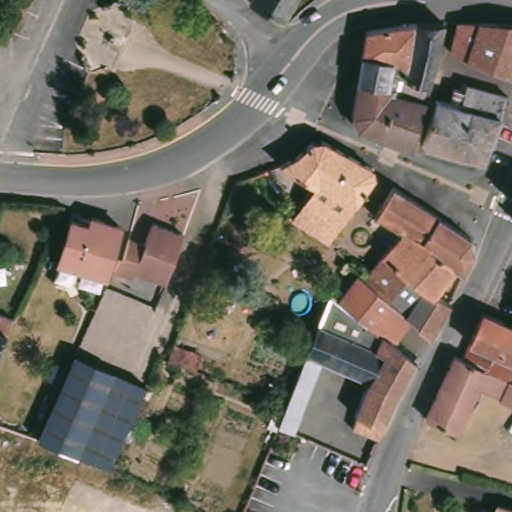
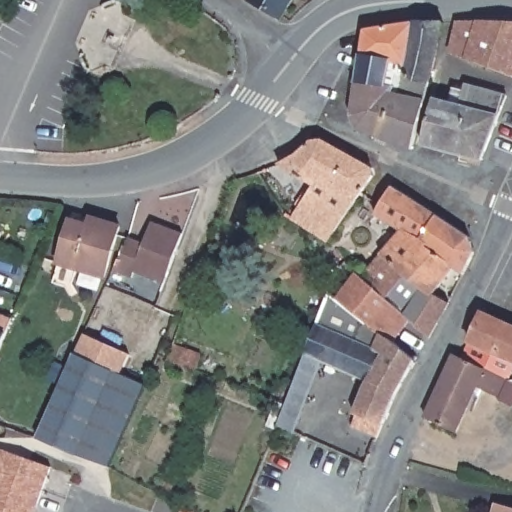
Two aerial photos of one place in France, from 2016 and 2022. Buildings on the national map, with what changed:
unchanged [(287,19),(270,9),(256,0),(299,0),(287,19)]
unchanged [(431,88),(428,102),(423,128),(418,152),(410,149),(407,147),(362,129),(361,129),(354,111),(358,83),(359,81),(383,87),(394,90),(396,90),(399,91),(400,91),(403,90),(405,88),(406,86),(406,85),(408,79),(408,77),(417,21),(436,21),(445,22),(431,88)]
unchanged [(406,77),(399,76),(396,90),(394,90),(383,87),(359,81),(363,54),(368,29),(395,24),(411,22),(417,21),(408,77),(406,77)]
unchanged [(495,23),(512,23),(512,69),(479,56),(459,48),(465,22),(495,23)]
unchanged [(463,107),(467,87),(510,94),(502,115),(484,161),(433,152),(425,150),(428,136),(432,120),(432,119),(436,102),(463,107)]
unchanged [(316,187),(280,165),(285,163),(291,159),(296,157),(303,153),(306,151),(309,147),(312,143),(321,142),(324,143),(336,149),(360,162),(375,169),(374,181),(367,190),(365,194),(331,243),(317,234),(297,222),(304,211),(316,187)]
unchanged [(471,238),(477,254),(465,277),(453,271),(436,296),(451,304),(430,341),(408,326),(396,344),(417,361),(397,398),(386,425),(379,439),(352,429),(357,418),(354,416),(365,382),(322,364),(294,435),(278,430),(329,293),(334,298),(356,272),(363,276),(400,232),(374,214),(393,187),(471,238)]
unchanged [(80,218),(96,224),(97,220),(124,231),(105,280),(62,264),(80,218)]
unchanged [(147,245),(152,223),(187,232),(176,278),(144,271),(142,278),(119,273),(122,264),(127,265),(132,242),(147,245)]
unchanged [(512,325),(512,379),(470,360),(488,315),(512,325)]
unchanged [(16,322),(11,336),(0,363),(0,316),(16,322)]
new [(80,357),(75,355),(85,334),(131,354),(121,375),(80,357)]
unchanged [(202,355),(197,373),(166,362),(173,344),(202,355)]
unchanged [(508,400),(484,389),(478,403),(447,386),(457,368),(462,356),(470,360),(512,379),(512,406),(507,404),(508,400)]
unchanged [(80,357),(150,388),(112,471),(80,457),(65,451),(42,442),(80,357)]
unchanged [(462,433),(432,419),(438,406),(447,386),(478,403),(462,433)]
new [(37,512),(0,512),(0,448),(53,469),(37,512)]
unchanged [(512,512),(501,512),(504,501),(512,502),(512,512)]

